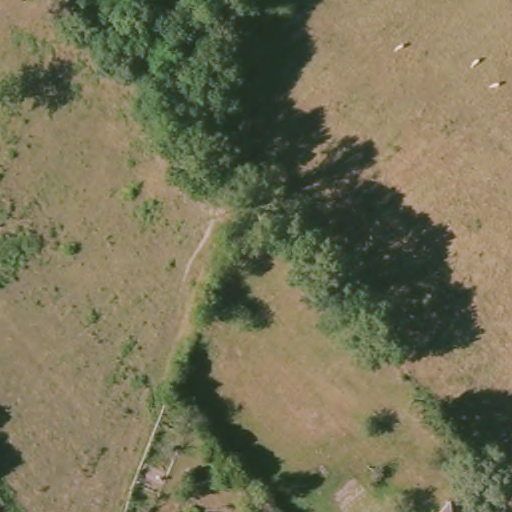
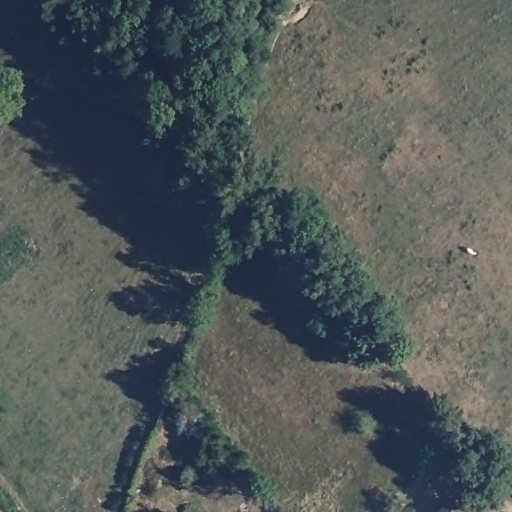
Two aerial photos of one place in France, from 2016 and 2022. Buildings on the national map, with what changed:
unchanged [(463,512),(435,512),(451,498),(463,512)]

